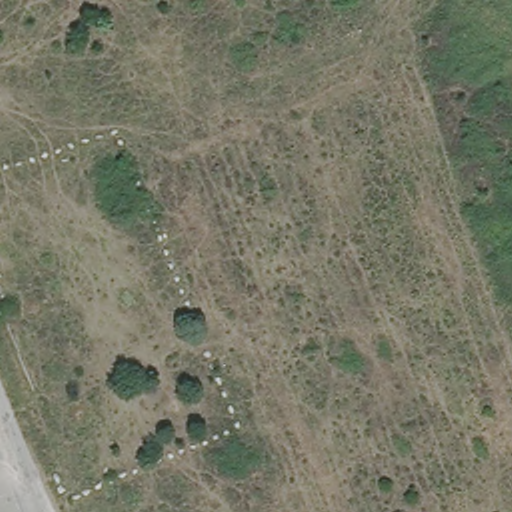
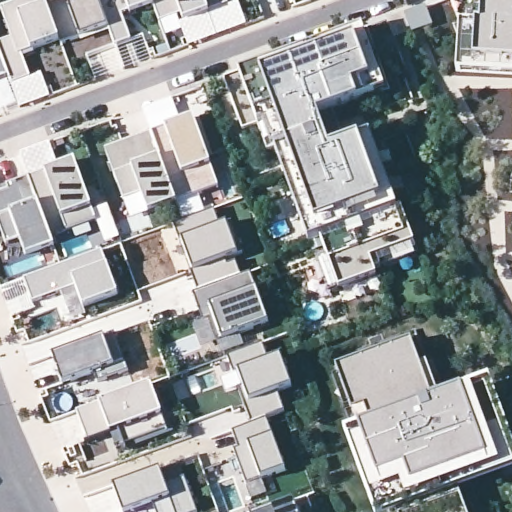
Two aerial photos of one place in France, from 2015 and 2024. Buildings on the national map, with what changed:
new [(1,9),(24,0),(45,0),(60,40),(22,54),(30,77),(12,84),(10,77),(0,51),(0,42),(12,38),(1,9)]
new [(89,0),(98,0),(108,27),(61,45),(60,40),(45,0),(77,0),(78,4),(89,0)]
new [(130,14),(129,12),(121,15),(131,40),(115,46),(108,27),(98,0),(151,0),(153,6),(130,14)]
new [(184,21),(182,14),(160,22),(153,6),(151,0),(204,0),(209,12),(184,21)]
new [(209,12),(204,0),(226,0),(228,5),(209,12)]
new [(460,74),(462,27),(479,27),(483,27),(484,0),(512,0),(512,77),(460,74)]
new [(411,30),(394,36),(388,17),(405,11),(411,30)]
new [(371,259),(376,275),(341,288),(322,237),(310,241),(266,125),(260,126),(241,74),(259,67),(262,74),(352,41),(349,34),(363,30),(387,91),(358,100),(317,115),(330,149),(359,140),(372,137),(399,210),(402,210),(415,244),(371,259)]
new [(0,81),(0,51),(10,77),(0,81)]
new [(151,132),(193,117),(219,187),(176,202),(151,132)]
new [(107,157),(105,150),(112,147),(151,132),(176,202),(149,213),(130,220),(123,200),(107,157)]
new [(75,161),(96,220),(51,237),(29,177),(75,161)]
new [(26,255),(20,240),(6,245),(0,228),(0,193),(8,190),(7,186),(29,177),(38,202),(54,245),(26,255)]
new [(215,211),(222,227),(227,225),(232,224),(244,252),(232,257),(233,263),(237,262),(242,276),(200,292),(194,273),(182,241),(175,226),(215,211)]
new [(34,303),(25,281),(103,251),(119,295),(84,308),(77,287),(58,295),(44,300),(34,303)]
new [(199,311),(193,294),(251,272),(269,323),(218,342),(209,320),(203,322),(199,311)]
new [(115,333),(129,372),(98,383),(94,373),(63,385),(52,356),(115,333)]
new [(347,433),(362,430),(339,368),(412,341),(437,403),(462,393),(490,381),(512,443),(512,471),(456,491),(465,512),(400,512),(376,512),(347,433)]
new [(251,407),(249,402),(238,373),(234,374),(227,357),(263,343),(269,360),(281,356),(292,387),(278,392),(279,396),(285,412),(267,418),(287,470),(248,486),(235,451),(239,448),(233,432),(251,425),(245,409),(251,407)]
new [(151,385),(167,430),(124,446),(118,429),(111,431),(112,434),(88,442),(77,412),(151,385)]
new [(160,470),(166,485),(185,478),(197,512),(155,512),(153,504),(131,512),(122,512),(113,487),(160,470)]
new [(295,501),(299,512),(266,512),(295,501)]

